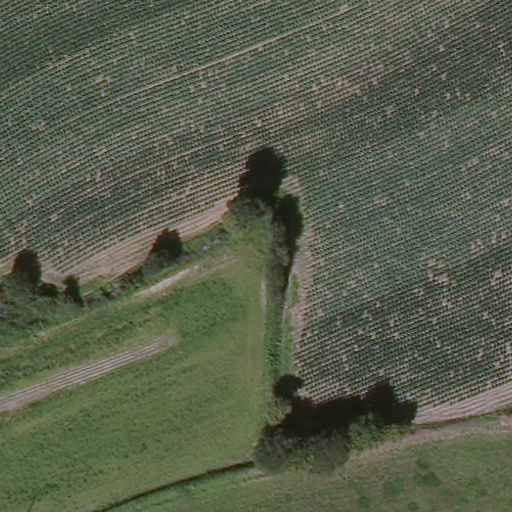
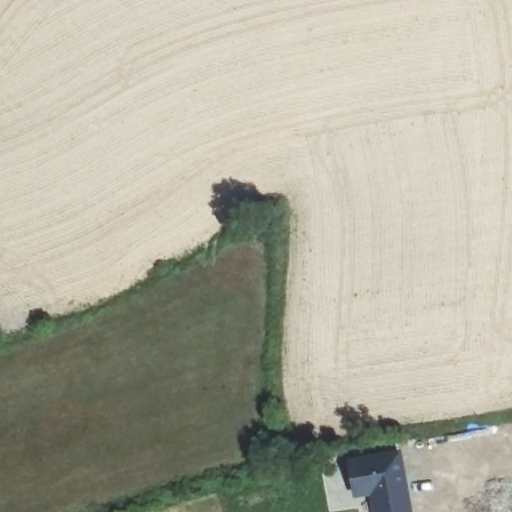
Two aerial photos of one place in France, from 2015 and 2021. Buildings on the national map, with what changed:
new [(411,511),(409,512),(377,512),(373,490),(356,494),(350,462),(398,451),(411,511)]

